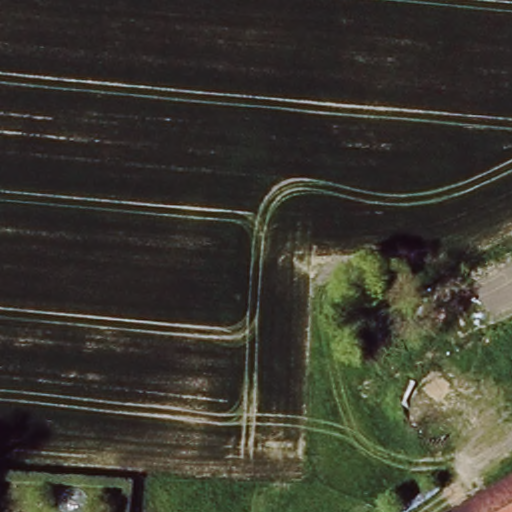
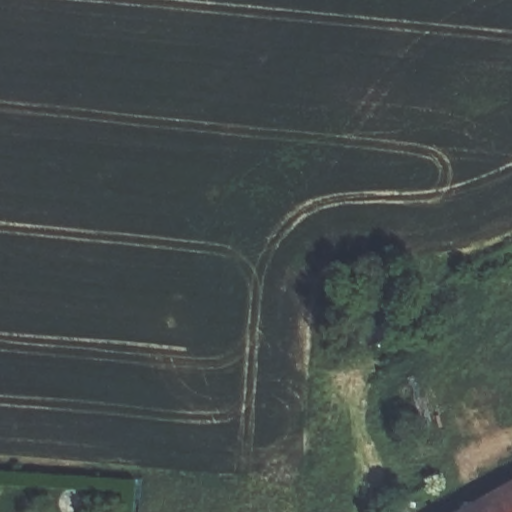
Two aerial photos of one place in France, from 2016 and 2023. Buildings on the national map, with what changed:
unchanged [(512,478),(512,512),(451,512),(512,478)]

